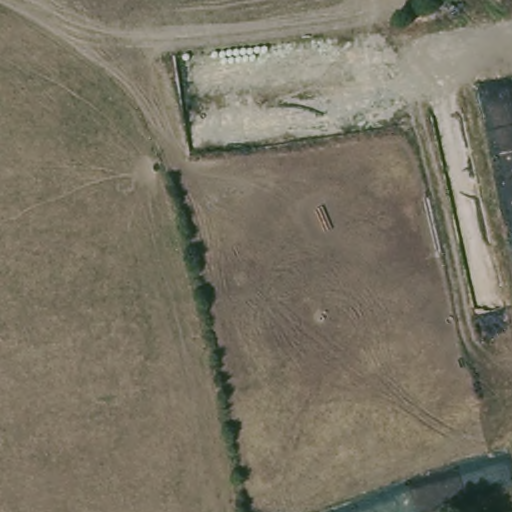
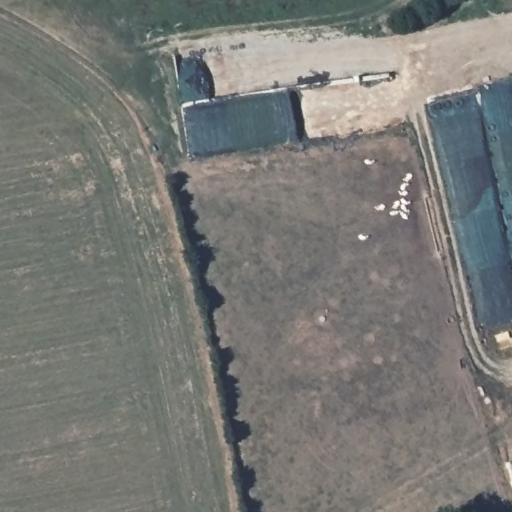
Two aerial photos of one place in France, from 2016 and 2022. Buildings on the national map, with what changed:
[]

